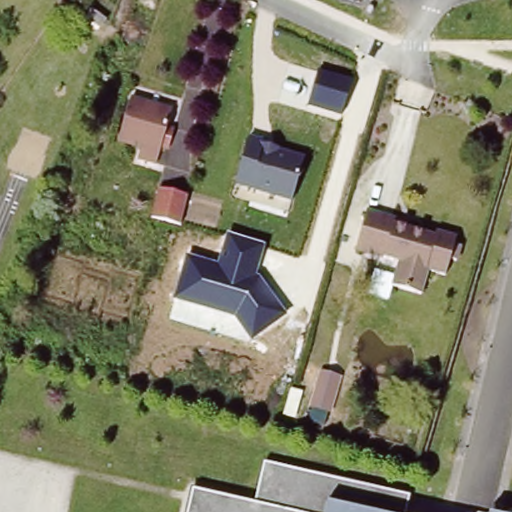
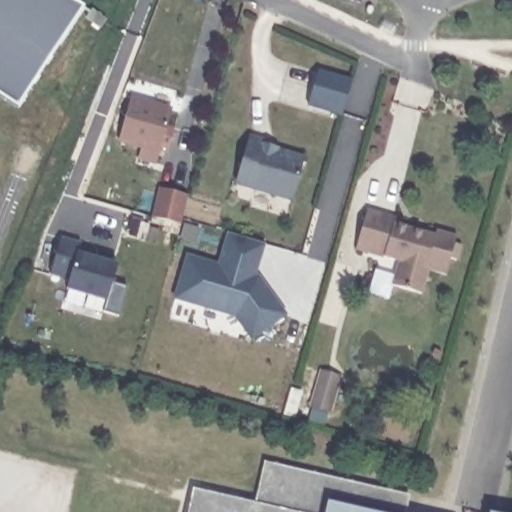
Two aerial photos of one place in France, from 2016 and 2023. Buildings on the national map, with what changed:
new [(84,7),(18,109),(0,97),(0,0),(73,0),(84,7)]
unchanged [(319,71),(351,81),(341,117),(308,106),(319,71)]
unchanged [(138,157),(142,145),(118,137),(130,97),(171,109),(159,150),(156,162),(138,157)]
unchanged [(292,197),(237,181),(251,136),(266,141),(277,144),(277,149),(304,157),(292,197)]
unchanged [(60,192),(68,166),(83,170),(75,197),(60,192)]
unchanged [(179,229),(164,225),(173,196),(187,200),(179,229)]
unchanged [(438,230),(457,237),(456,242),(464,246),(459,261),(452,258),(448,273),(432,270),(425,294),(394,286),(402,261),(357,247),(368,210),(398,218),(398,222),(436,232),(438,230)]
unchanged [(186,257),(218,265),(227,234),(265,245),(257,275),(287,315),(251,340),(234,314),(175,299),(186,257)]
new [(117,315),(104,311),(107,301),(66,288),(69,279),(50,273),(63,236),(83,243),(80,253),(118,264),(113,283),(126,287),(117,315)]
unchanged [(265,456),(417,491),(411,512),(187,512),(194,482),(255,497),(265,456)]
unchanged [(506,512),(491,512),(492,508),(506,512)]

